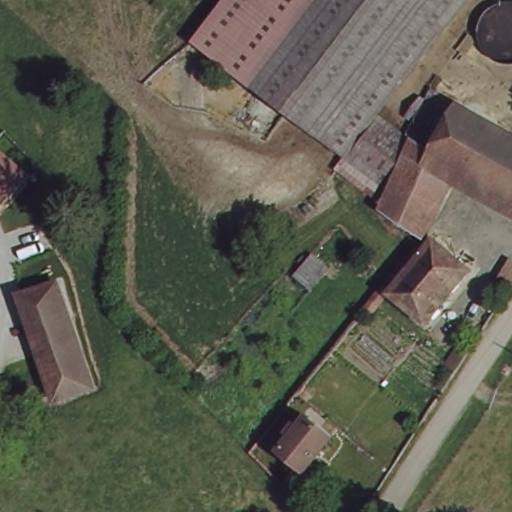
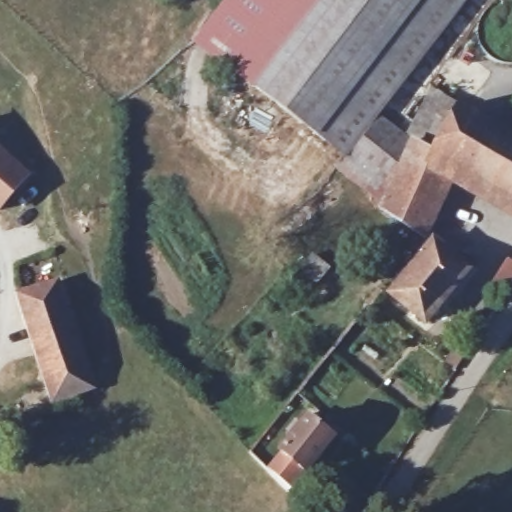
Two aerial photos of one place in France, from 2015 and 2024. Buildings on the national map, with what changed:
unchanged [(253,0),(210,59),(189,44),(224,0),(253,0)]
unchanged [(253,0),(318,0),(251,91),(210,59),(253,0)]
unchanged [(340,161),(251,91),(318,0),(461,0),(373,117),(340,161)]
unchanged [(509,70),(499,70),(489,67),(481,61),(474,53),(470,44),(469,34),(470,24),(474,15),(481,7),(490,2),(496,0),(512,0),(512,69),(509,70)]
unchanged [(425,91),(512,138),(512,202),(457,176),(419,237),(378,211),(386,197),(412,150),(404,144),(425,91)]
unchanged [(404,144),(412,150),(386,197),(340,161),(373,117),(404,144)]
unchanged [(0,210),(0,155),(27,180),(0,210)]
unchanged [(469,278),(430,331),(393,303),(402,291),(397,288),(405,279),(409,283),(435,252),(469,278)]
unchanged [(328,272),(311,293),(302,287),(292,280),(310,257),(320,265),(328,272)]
unchanged [(89,388),(52,399),(19,297),(57,285),(89,388)]
unchanged [(329,439),(301,471),(280,454),(291,441),(285,437),(305,416),(329,439)]
unchanged [(332,512),(328,512),(330,510),(332,512)]

